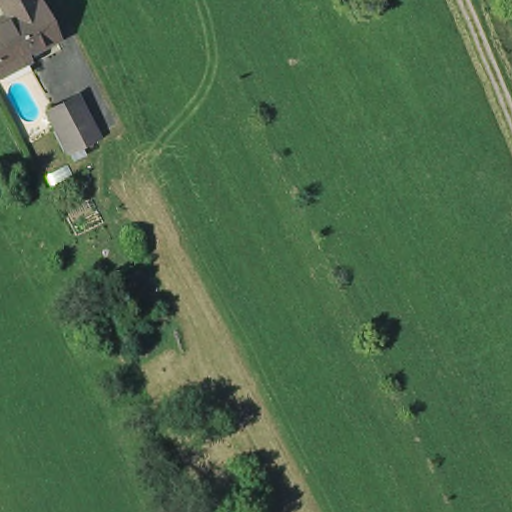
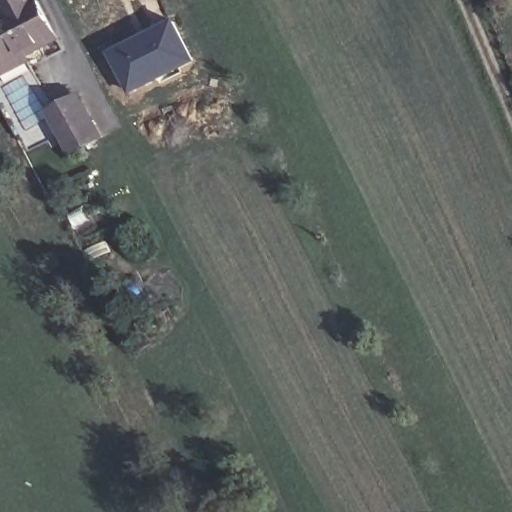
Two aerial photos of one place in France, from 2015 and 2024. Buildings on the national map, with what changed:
unchanged [(0,67),(0,32),(15,24),(4,3),(11,0),(35,0),(41,11),(45,9),(64,46),(5,76),(0,67)]
new [(173,17),(197,62),(130,94),(109,50),(173,17)]
unchanged [(77,148),(57,108),(76,98),(84,94),(97,122),(104,134),(77,148)]

